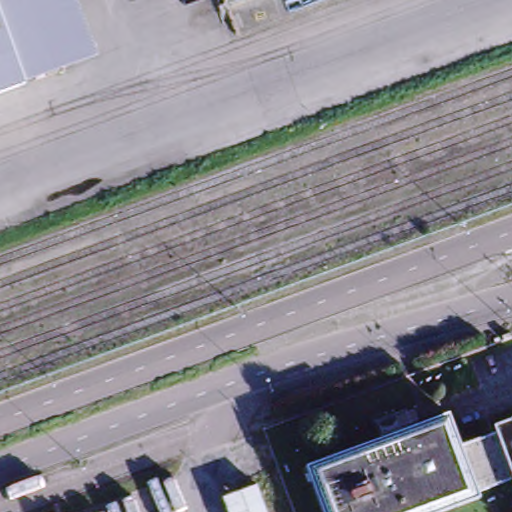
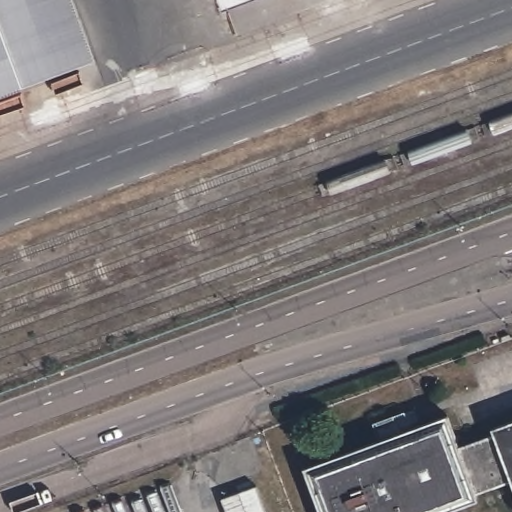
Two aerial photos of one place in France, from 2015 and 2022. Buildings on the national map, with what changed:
unchanged [(53,74),(0,94),(0,0),(26,0),(53,74)]
unchanged [(218,0),(232,0),(220,4),(218,0)]
unchanged [(495,430),(492,424),(512,417),(512,480),(511,477),(475,490),(477,497),(435,512),(321,512),(304,464),(382,436),(377,421),(393,415),(399,431),(447,413),(459,443),(495,430)]
unchanged [(225,512),(221,500),(255,487),(264,512),(225,512)]

